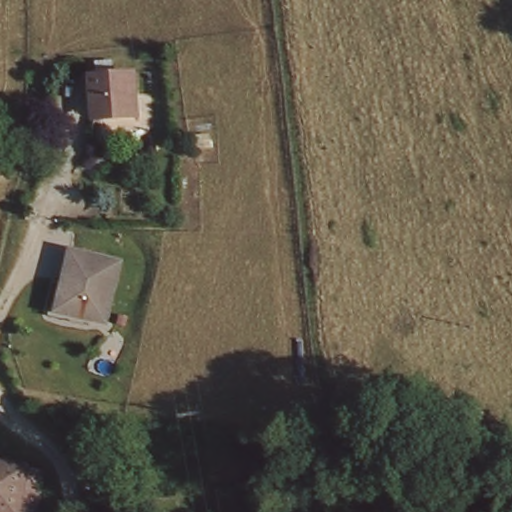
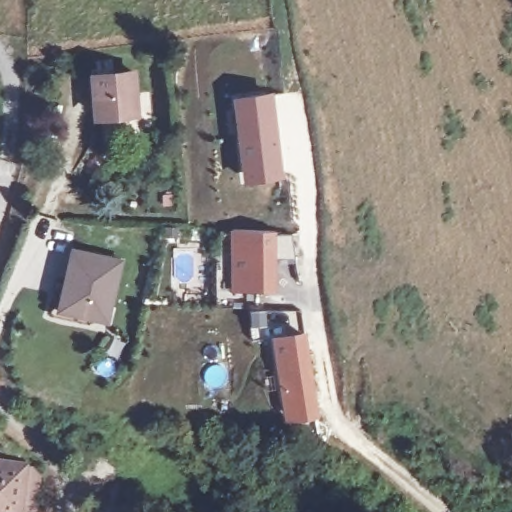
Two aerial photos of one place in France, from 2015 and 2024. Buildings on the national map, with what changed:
unchanged [(92,76),(133,72),(136,115),(122,116),(122,113),(95,115),(92,76)]
new [(274,92),(285,179),(241,183),(230,96),(274,92)]
new [(275,231),(275,235),(292,234),(295,259),(267,259),(268,292),(233,292),(232,229),(275,231)]
unchanged [(67,245),(115,257),(101,316),(52,304),(67,245)]
new [(304,341),(315,416),(286,420),(275,346),(304,341)]
unchanged [(25,508),(7,505),(7,508),(0,507),(0,461),(30,466),(25,508)]

